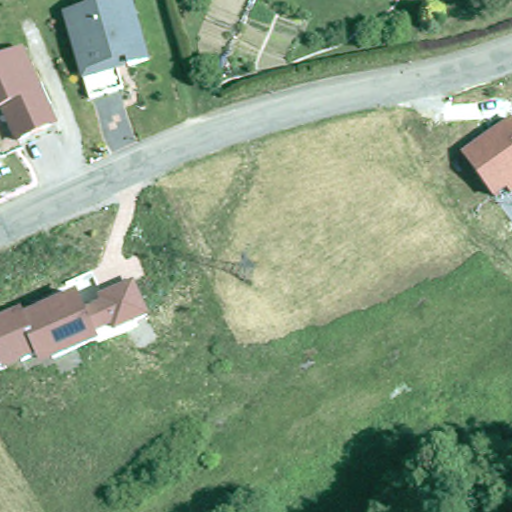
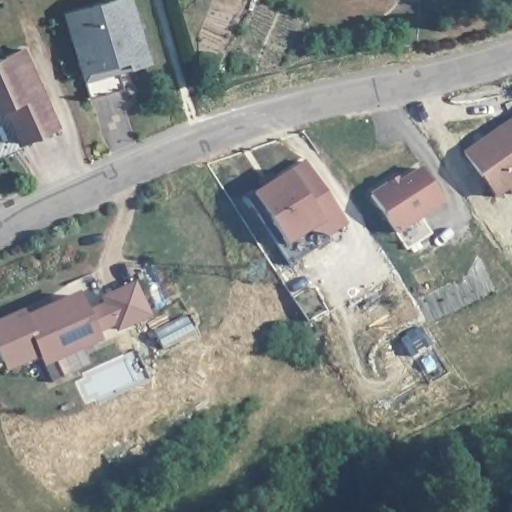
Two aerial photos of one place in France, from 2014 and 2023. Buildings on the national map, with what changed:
unchanged [(154,60),(84,80),(67,15),(116,0),(137,0),(154,60)]
unchanged [(60,125),(23,141),(9,110),(0,113),(0,58),(24,47),(60,125)]
new [(509,118),(512,116),(512,122),(509,118)]
unchanged [(509,118),(512,122),(512,195),(508,190),(494,199),(461,154),(509,118)]
new [(307,233),(285,247),(268,221),(264,226),(246,199),(252,194),(288,170),(304,162),(346,226),(328,237),(307,233)]
new [(421,166),(444,205),(396,233),(369,192),(396,176),(398,179),(421,166)]
unchanged [(0,361),(0,320),(22,310),(24,314),(80,291),(89,310),(103,303),(99,296),(135,280),(150,319),(117,334),(115,328),(100,334),(103,342),(42,368),(37,358),(5,372),(0,361)]

